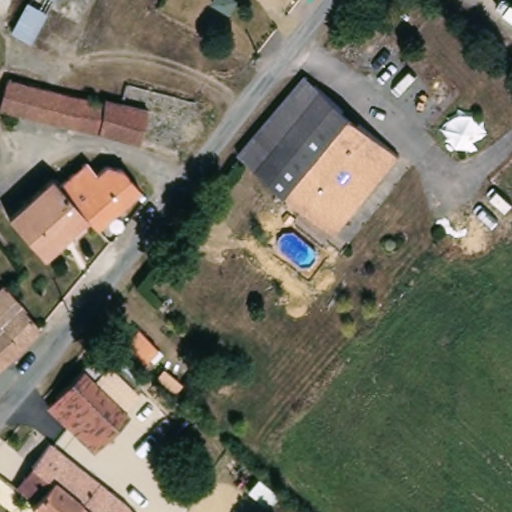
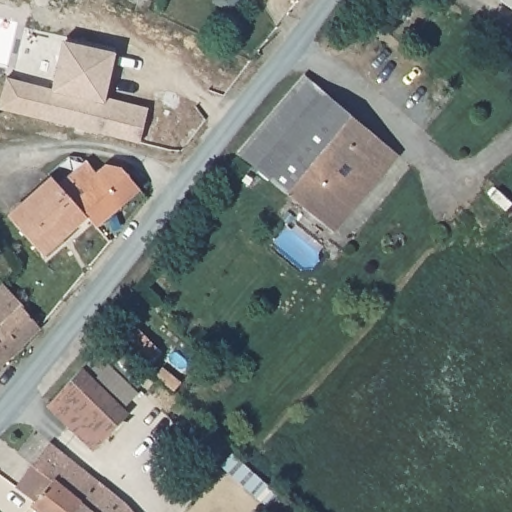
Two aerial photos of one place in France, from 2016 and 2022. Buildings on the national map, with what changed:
new [(62,39),(117,52),(107,99),(99,97),(98,100),(51,89),(62,39)]
unchanged [(397,154),(333,232),(237,154),(304,75),(397,154)]
unchanged [(133,143),(95,133),(0,110),(0,79),(1,78),(43,88),(98,100),(99,97),(115,101),(141,109),(133,143)]
unchanged [(100,227),(91,215),(63,185),(90,161),(101,173),(110,165),(127,169),(144,189),(100,227)]
unchanged [(31,214),(58,244),(47,254),(13,216),(56,178),(63,185),(31,214)]
unchanged [(91,215),(58,244),(31,214),(63,185),(91,215)]
unchanged [(21,351),(22,352),(0,370),(0,289),(2,288),(25,314),(24,314),(39,332),(21,351)]
unchanged [(156,348),(142,362),(129,348),(143,334),(156,348)]
unchanged [(232,368),(223,376),(208,359),(217,351),(232,368)]
unchanged [(93,451),(47,406),(81,369),(127,414),(93,451)]
unchanged [(30,511),(34,506),(34,505),(15,492),(49,448),(78,471),(77,472),(97,489),(98,487),(126,509),(128,512),(32,512),(30,511)]

